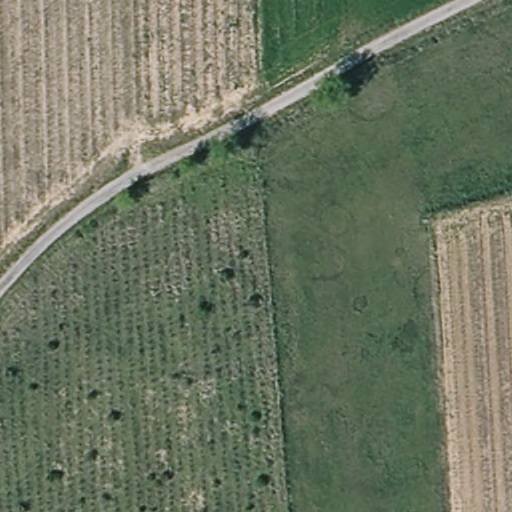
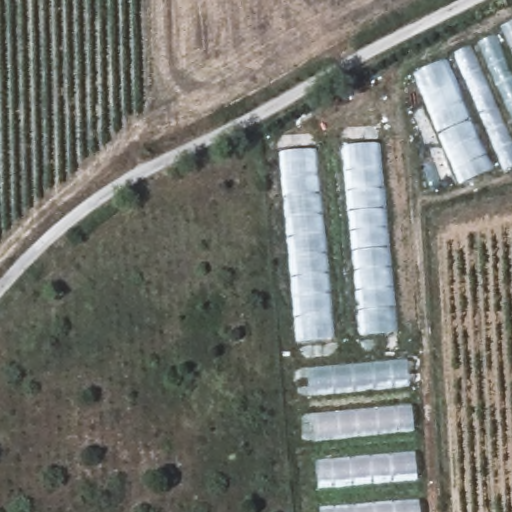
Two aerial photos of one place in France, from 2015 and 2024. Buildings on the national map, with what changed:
new [(512,71),(495,33),(512,25),(512,71)]
new [(512,71),(512,171),(504,175),(450,53),(495,33),(512,71)]
new [(500,167),(459,185),(412,75),(452,58),(500,167)]
new [(380,143),(398,332),(360,335),(341,147),(380,143)]
new [(318,149),(335,339),(296,342),(279,154),(318,149)]
new [(408,360),(410,386),(309,396),(306,368),(408,360)]
new [(415,430),(314,441),(313,415),(411,405),(415,430)]
new [(316,462),(415,452),(418,479),(317,487),(316,462)]
new [(420,512),(320,512),(320,508),(419,501),(420,512)]

